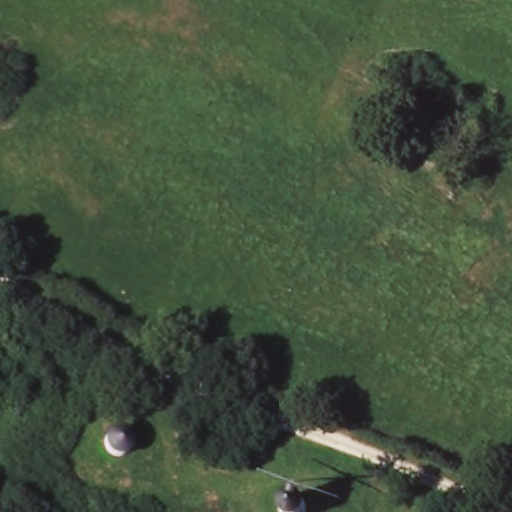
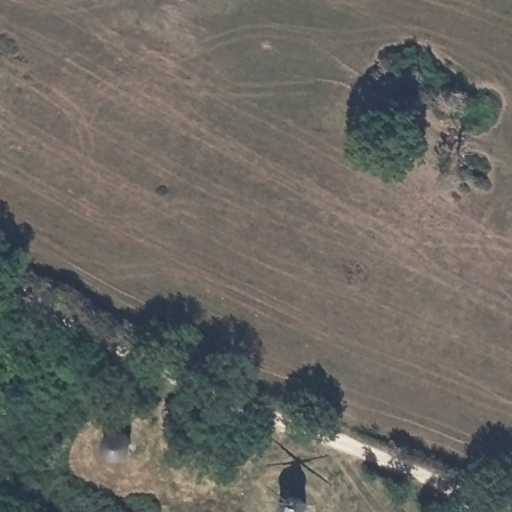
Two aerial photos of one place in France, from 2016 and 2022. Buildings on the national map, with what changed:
unchanged [(117,426),(120,426),(123,427),(126,428),(128,430),(130,432),(132,435),(133,437),(134,440),(134,444),(134,447),(133,450),(131,454),(129,455),(127,457),(126,458),(123,459),(120,460),(116,460),(113,460),(110,458),(108,457),(107,456),(105,454),(104,452),(102,450),(101,447),(101,445),(101,442),(102,437),(104,434),(106,431),(107,430),(111,428),(113,427),(117,426)]
unchanged [(301,490),(304,490),(306,491),(309,493),(311,495),(313,497),(314,500),(315,503),(315,506),(314,510),(313,512),(282,512),(282,510),(281,507),(281,505),(282,500),(284,497),(286,494),(288,492),(291,491),(294,490),(298,489),(301,490)]

